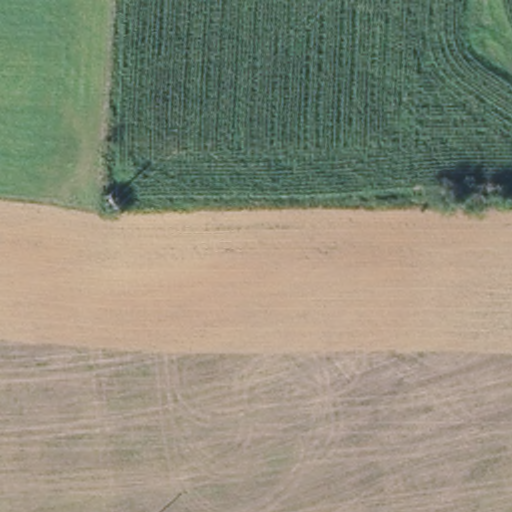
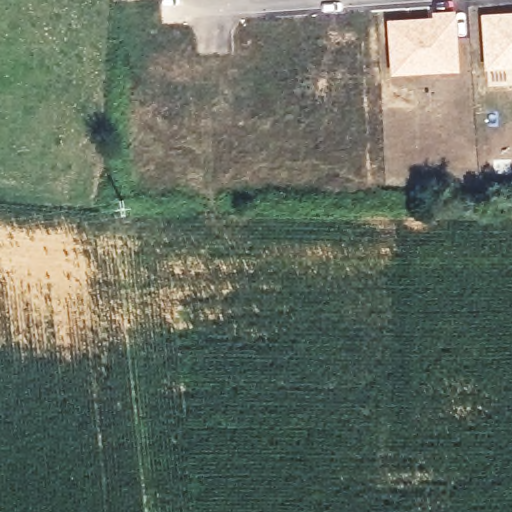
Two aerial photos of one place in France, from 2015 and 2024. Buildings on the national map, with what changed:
new [(512,9),(512,68),(484,70),(478,12),(512,9)]
new [(431,16),(431,12),(453,11),(458,71),(390,76),(385,19),(431,16)]

